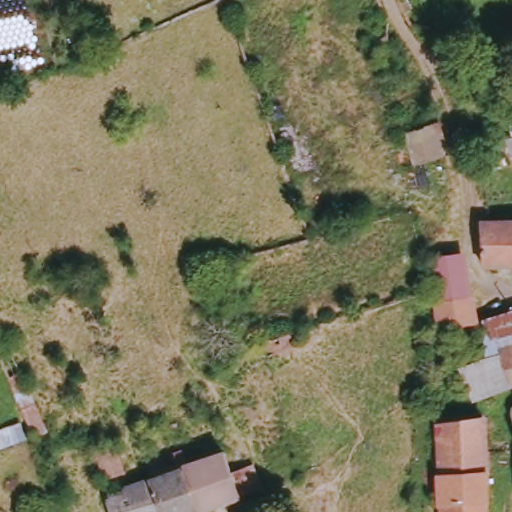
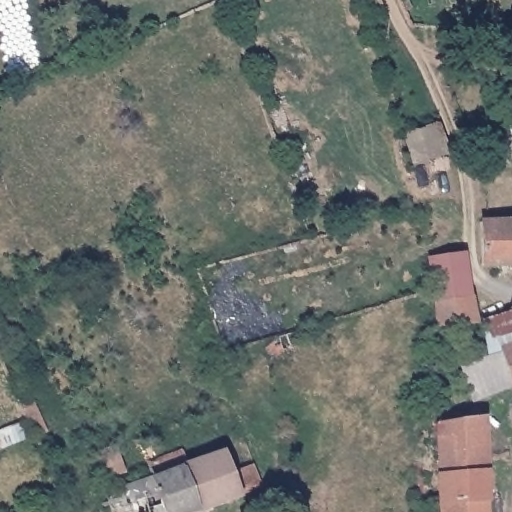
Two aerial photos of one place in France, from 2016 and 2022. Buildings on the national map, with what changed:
unchanged [(431,118),(433,127),(424,130),(430,154),(413,160),(418,170),(404,175),(393,132),(431,118)]
unchanged [(484,216),(488,225),(512,224),(512,268),(477,268),(473,216),(484,216)]
unchanged [(426,255),(459,254),(472,322),(434,325),(429,286),(426,255)]
unchanged [(512,306),(512,378),(468,397),(454,370),(479,356),(479,321),(512,306)]
unchanged [(0,449),(0,427),(16,420),(0,383),(0,349),(6,345),(41,432),(24,440),(0,449)]
unchanged [(507,417),(506,401),(512,399),(512,432),(507,417)]
unchanged [(429,425),(478,420),(482,500),(434,506),(429,425)]
unchanged [(253,485),(194,506),(177,512),(105,512),(90,471),(123,461),(131,480),(217,450),(226,475),(247,467),(253,485)]
unchanged [(434,506),(482,500),(483,512),(434,512),(434,506)]

